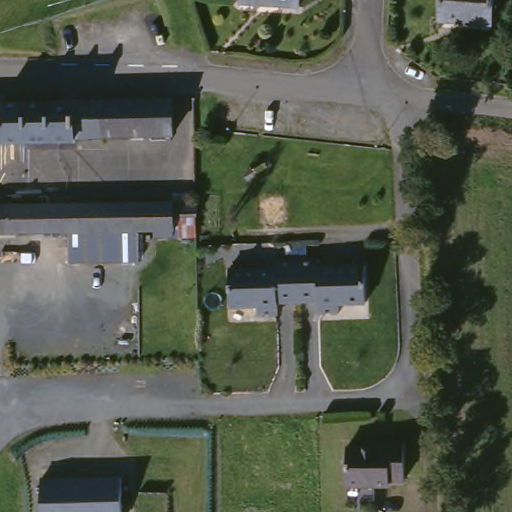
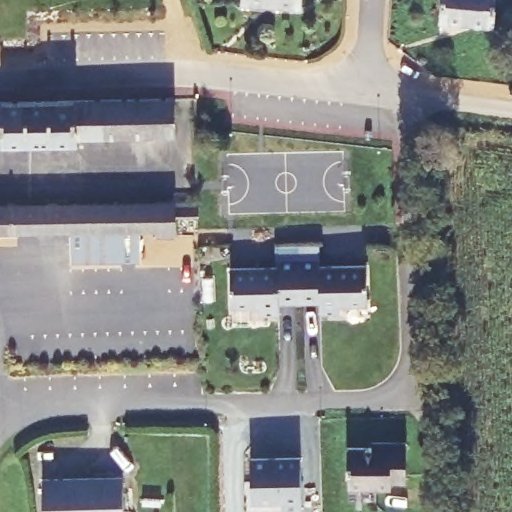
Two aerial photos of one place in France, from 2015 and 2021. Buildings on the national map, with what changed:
unchanged [(302,0),(302,3),(242,1),(242,0),(302,0)]
unchanged [(495,0),(492,25),(441,20),(443,0),(495,0)]
unchanged [(178,107),(179,143),(176,144),(176,148),(170,149),(170,143),(80,144),(80,150),(4,151),(4,146),(0,147),(0,108),(99,107),(178,107)]
unchanged [(154,198),(177,197),(177,199),(199,198),(199,225),(199,232),(154,233),(154,224),(154,198)]
unchanged [(12,199),(81,198),(81,225),(65,225),(44,225),(12,226),(12,199)]
unchanged [(154,198),(154,224),(139,224),(81,225),(81,198),(154,198)]
unchanged [(12,226),(0,226),(0,199),(12,199),(12,226)]
unchanged [(65,225),(81,225),(139,224),(139,259),(65,259),(65,225)]
unchanged [(325,253),(325,261),(371,258),(373,297),(345,298),(345,307),(325,308),(325,295),(302,296),(300,254),(325,253)]
unchanged [(283,263),(283,255),(300,254),(302,296),(287,296),(287,308),(267,310),(266,300),(239,302),(237,264),(283,263)]
unchanged [(367,449),(367,443),(401,442),(402,488),(345,488),(345,449),(367,449)]
new [(250,478),(251,455),(300,454),(300,508),(282,509),(282,512),(243,512),(243,479),(250,478)]
unchanged [(42,481),(124,478),(124,512),(44,512),(42,481)]

